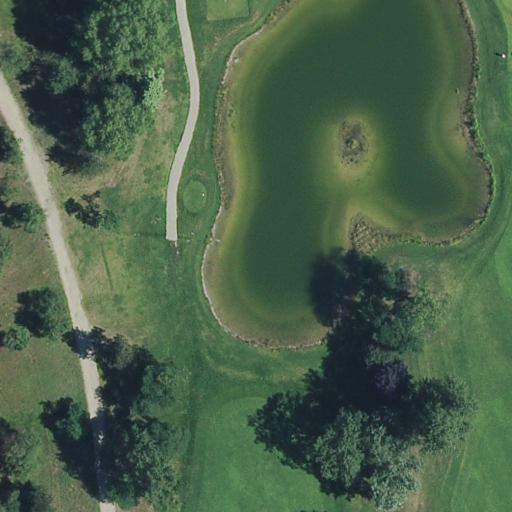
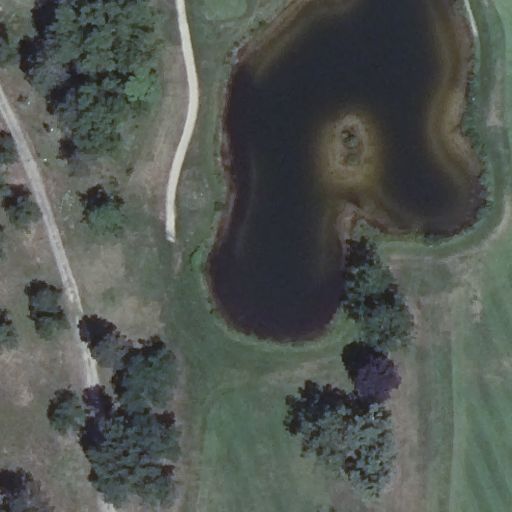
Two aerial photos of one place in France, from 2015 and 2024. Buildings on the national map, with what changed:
unchanged [(59,8),(53,0),(69,0),(59,8)]

